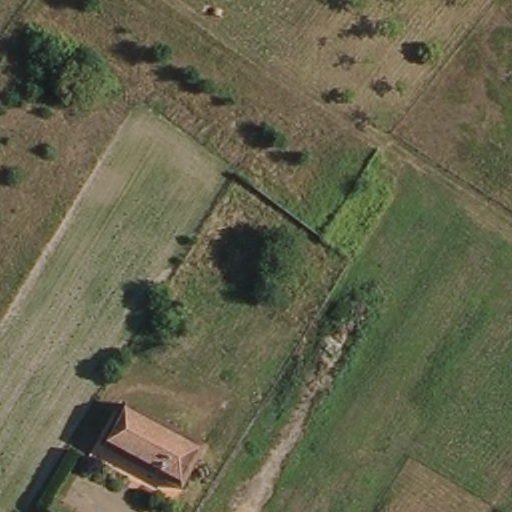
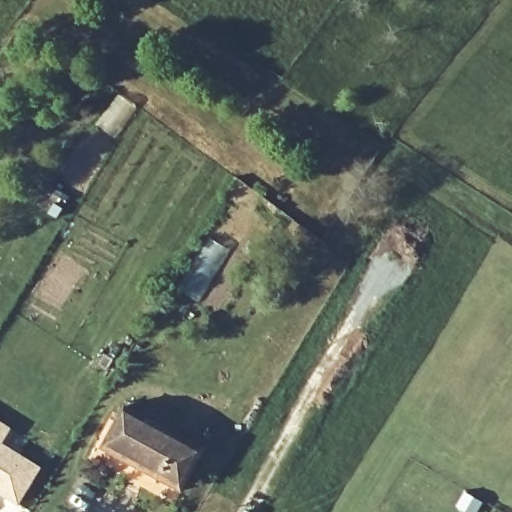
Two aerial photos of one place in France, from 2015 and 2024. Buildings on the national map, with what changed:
unchanged [(149,478),(99,451),(122,406),(176,434),(149,478)]
new [(3,442),(41,467),(19,505),(0,494),(0,420),(12,427),(3,442)]
unchanged [(176,434),(203,448),(180,493),(149,478),(176,434)]

